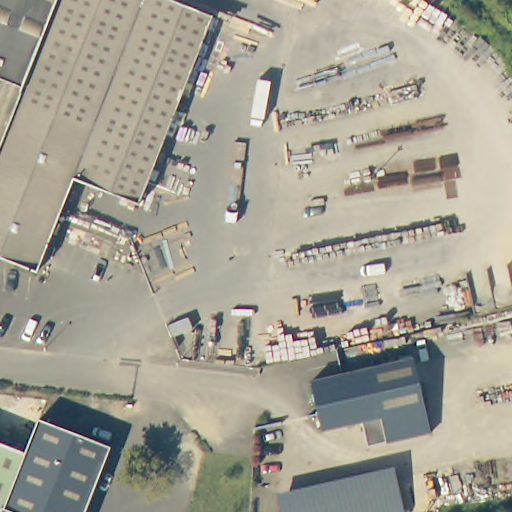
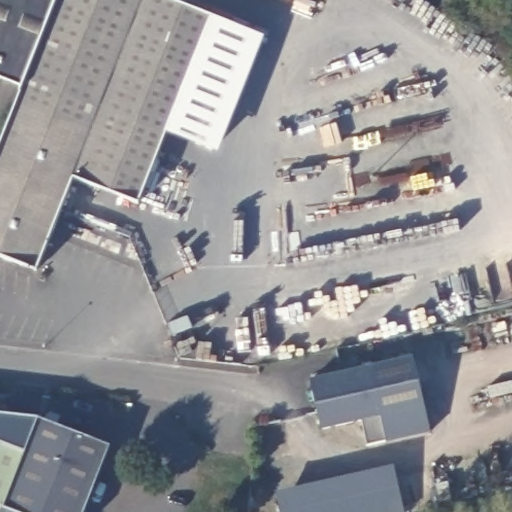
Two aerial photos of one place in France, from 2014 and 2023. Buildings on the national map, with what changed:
unchanged [(0,79),(0,0),(58,0),(23,89),(0,79)]
unchanged [(214,17),(139,205),(74,179),(37,272),(0,257),(0,147),(23,89),(58,0),(170,0),(214,17)]
new [(214,17),(264,36),(217,154),(168,132),(214,17)]
unchanged [(310,386),(414,363),(431,437),(367,451),(361,426),(321,435),(310,386)]
unchanged [(8,512),(29,457),(38,434),(43,423),(114,452),(91,512),(8,512)]
unchanged [(8,512),(0,512),(0,446),(29,457),(8,512)]
unchanged [(404,512),(281,512),(279,505),(396,479),(404,512)]

